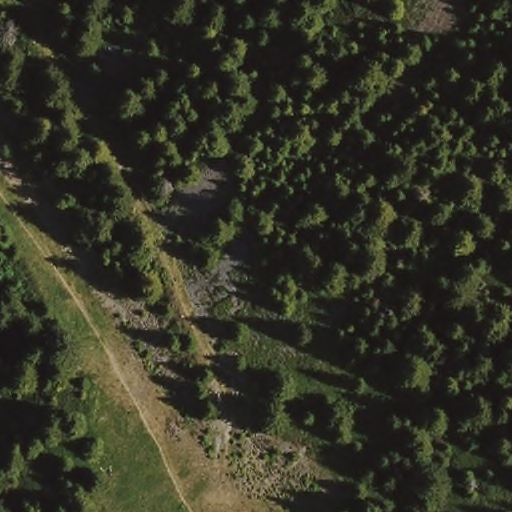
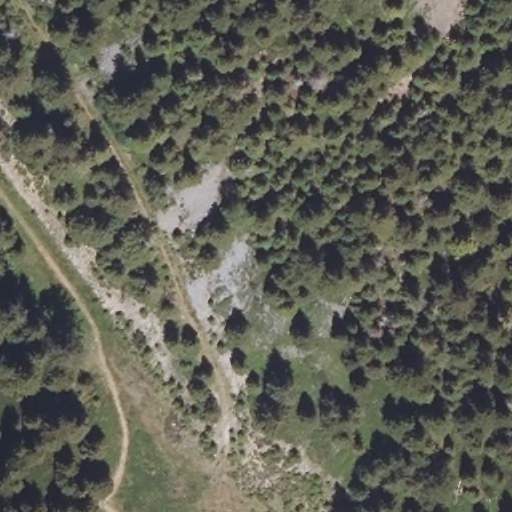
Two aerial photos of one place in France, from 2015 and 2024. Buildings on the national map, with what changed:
[]

